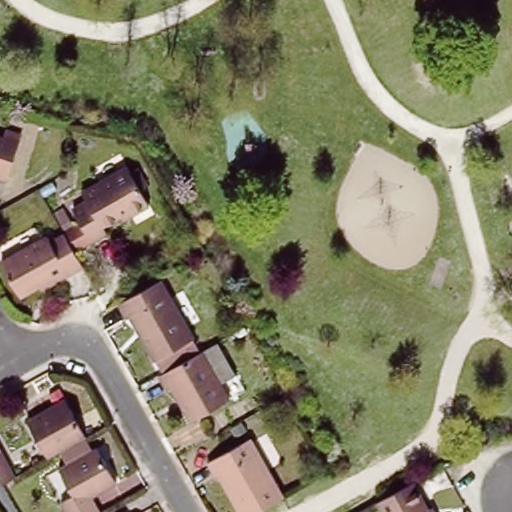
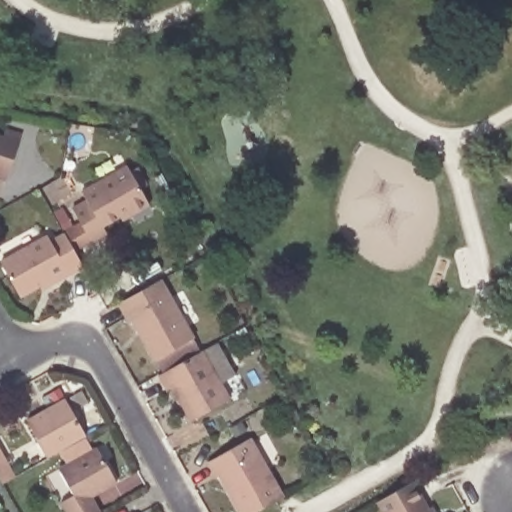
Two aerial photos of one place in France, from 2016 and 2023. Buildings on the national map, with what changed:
unchanged [(3,178),(0,176),(0,132),(17,138),(3,178)]
unchanged [(0,267),(0,260),(43,236),(46,241),(61,234),(60,233),(78,224),(68,208),(85,200),(80,189),(126,164),(129,170),(136,166),(148,187),(141,190),(148,204),(127,215),(125,212),(98,226),(103,234),(87,242),(71,251),(78,264),(46,283),(35,289),(33,285),(15,295),(0,267)]
unchanged [(151,357),(128,315),(124,317),(118,304),(158,281),(189,336),(199,354),(215,345),(233,378),(218,386),(227,402),(191,422),(171,387),(166,389),(159,376),(161,374),(151,357)]
unchanged [(63,396),(85,435),(58,450),(48,455),(26,416),(63,396)]
unchanged [(96,445),(115,481),(88,496),(97,512),(68,512),(63,502),(74,494),(58,466),(65,462),(58,450),(85,435),(86,434),(93,447),(96,445)]
unchanged [(282,499),(257,512),(240,512),(219,474),(216,475),(208,461),(248,439),(282,499)]
unchanged [(0,484),(0,455),(12,478),(0,484)]
unchanged [(410,483),(426,511),(429,509),(431,512),(382,512),(376,502),(410,483)]

